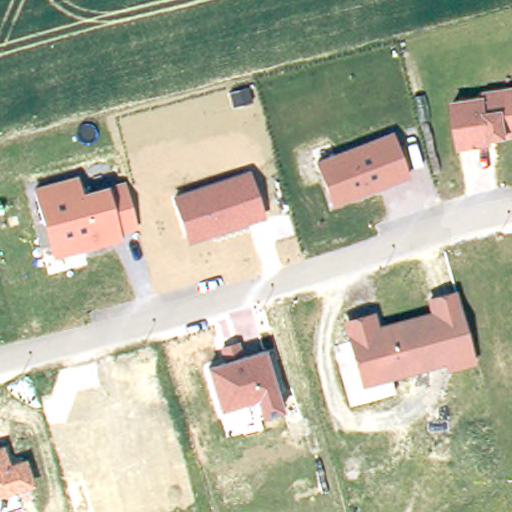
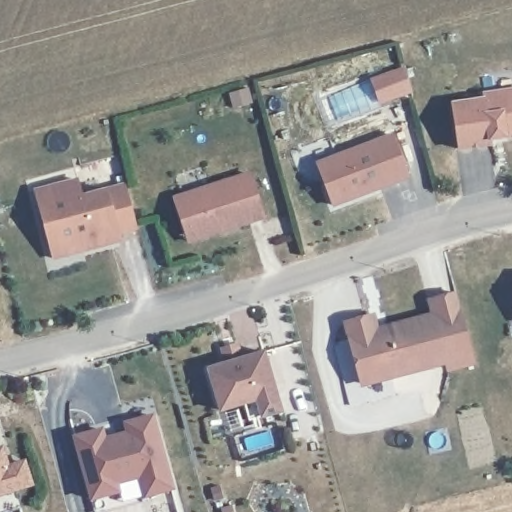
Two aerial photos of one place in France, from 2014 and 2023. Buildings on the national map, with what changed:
unchanged [(486,96),(485,90),(512,85),(512,136),(492,139),(492,145),(458,147),(452,100),(486,96)]
unchanged [(392,133),(409,178),(332,208),(314,161),(392,133)]
unchanged [(251,172),(266,218),(188,243),(173,197),(251,172)]
unchanged [(33,189),(80,176),(84,191),(128,180),(141,234),(51,259),(33,189)]
unchanged [(343,318),(376,309),(381,323),(427,312),(424,297),(459,290),(476,364),(446,372),(443,363),(361,387),(343,318)]
unchanged [(240,404),(219,409),(209,364),(266,349),(284,412),(248,424),(240,404)]
new [(106,435),(124,431),(122,422),(153,414),(173,489),(144,497),(138,479),(118,484),(120,492),(90,500),(71,434),(103,426),(106,435)]
unchanged [(3,449),(9,469),(26,464),(32,484),(0,493),(0,449),(3,449)]

